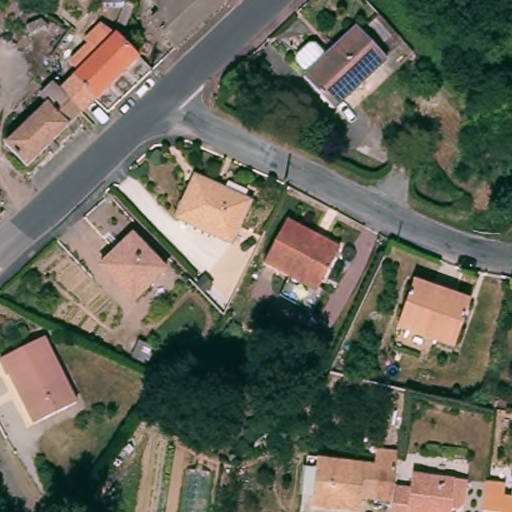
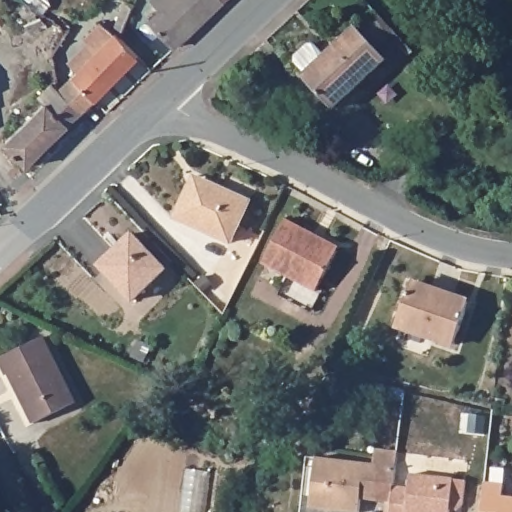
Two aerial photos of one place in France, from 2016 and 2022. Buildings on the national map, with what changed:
unchanged [(171,48),(146,21),(159,10),(149,0),(221,0),(222,1),(171,48)]
unchanged [(221,0),(224,0),(222,1),(221,0)]
unchanged [(360,29),(376,14),(400,40),(383,54),(386,57),(332,106),(301,74),(305,71),(295,59),(295,53),(307,42),(312,42),(323,54),(355,25),(360,29)]
unchanged [(103,19),(113,26),(124,35),(142,53),(85,109),(61,84),(80,67),(70,59),(90,39),(86,36),(103,19)]
unchanged [(29,163),(6,138),(47,99),(41,93),(56,78),(61,84),(85,109),(29,163)]
unchanged [(246,195),(232,238),(176,219),(190,177),(246,195)]
unchanged [(343,245),(340,253),(321,290),(267,264),(290,219),(321,235),(343,245)]
unchanged [(127,247),(123,243),(135,233),(167,268),(135,299),(105,268),(127,247)]
unchanged [(470,299),(455,340),(400,320),(415,279),(470,299)]
unchanged [(45,335),(77,402),(34,423),(1,355),(45,335)]
unchanged [(366,495),(365,508),(316,503),(321,454),(386,460),(384,488),(383,496),(366,495)]
unchanged [(395,488),(410,490),(412,474),(466,480),(463,505),(463,508),(460,510),(455,510),(450,509),(450,512),(393,512),(395,488)]
unchanged [(505,486),(503,498),(512,499),(512,512),(483,512),(486,484),(505,486)]

